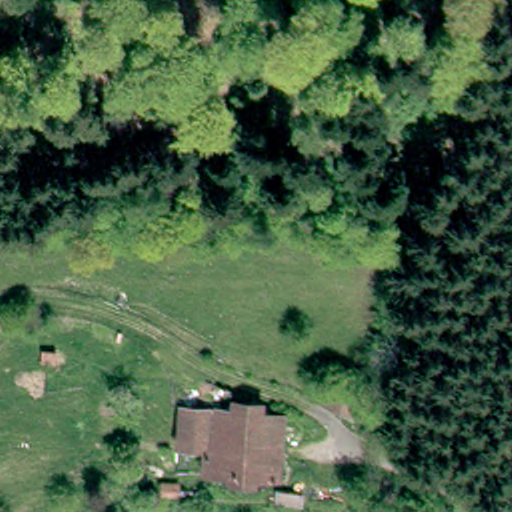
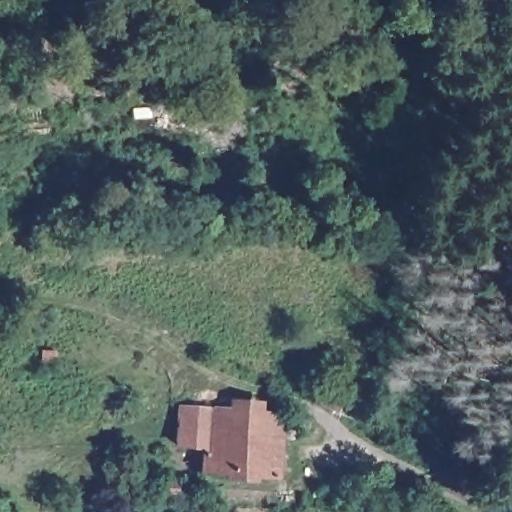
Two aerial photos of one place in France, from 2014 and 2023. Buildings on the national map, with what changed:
unchanged [(359,392),(344,417),(321,399),(334,377),(359,392)]
unchanged [(200,464),(201,442),(174,439),(177,399),(276,407),(273,468),(200,464)]

